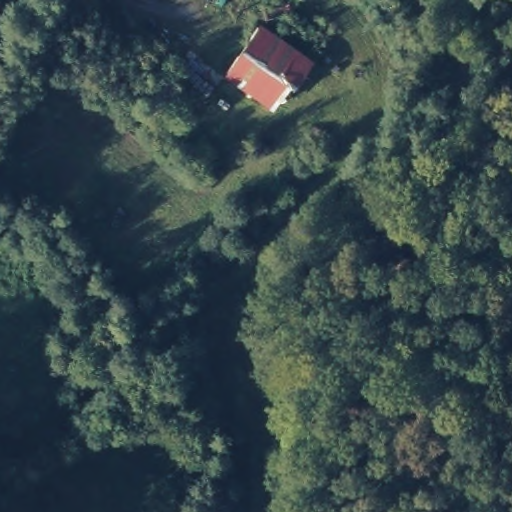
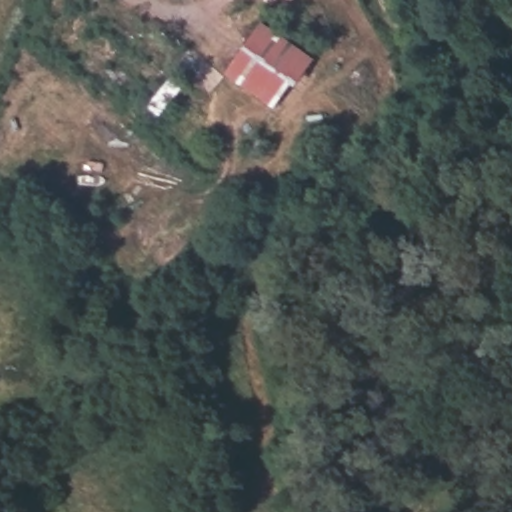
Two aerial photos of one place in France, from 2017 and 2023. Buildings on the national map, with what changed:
unchanged [(230,72),(268,22),(315,52),(276,104),(230,72)]
unchanged [(159,114),(147,104),(170,76),(183,86),(159,114)]

